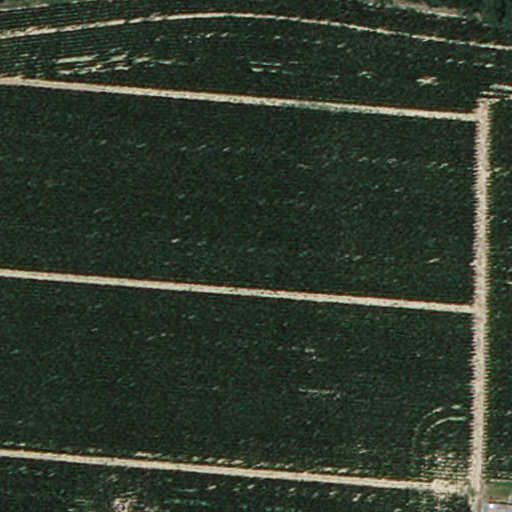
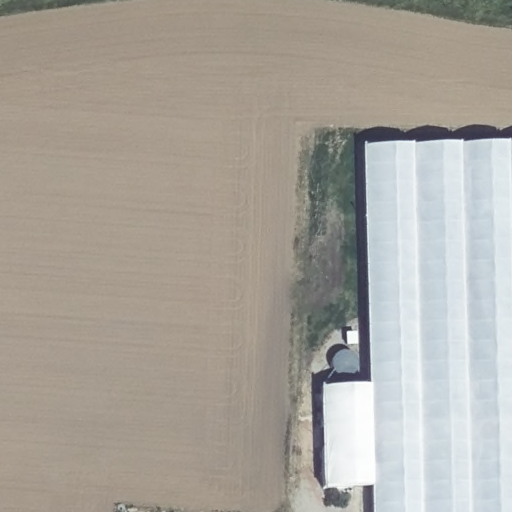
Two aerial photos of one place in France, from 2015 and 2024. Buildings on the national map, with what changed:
new [(371,488),(322,490),(320,386),(368,385),(362,145),(512,142),(512,512),(371,512),(371,488)]
demolished [(489,505),(512,506),(512,512),(489,512),(489,505)]

